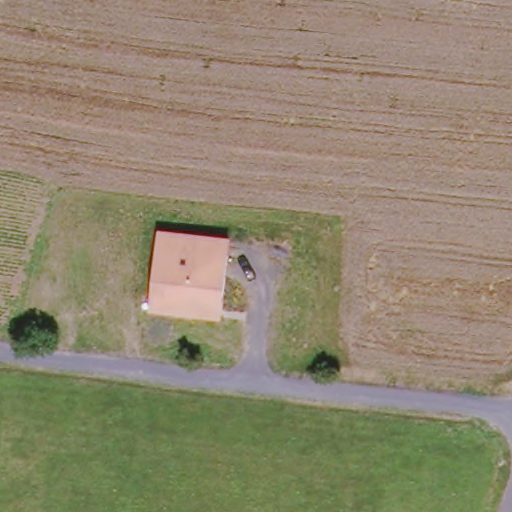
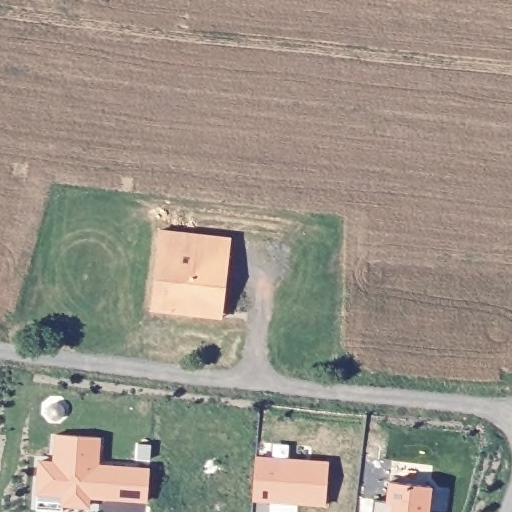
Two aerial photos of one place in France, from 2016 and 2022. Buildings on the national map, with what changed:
unchanged [(224,320),(151,311),(160,228),(232,235),(224,320)]
new [(39,461),(54,462),(56,435),(99,438),(97,465),(149,470),(147,501),(99,497),(100,493),(88,492),(87,506),(62,505),(63,495),(37,493),(39,461)]
new [(255,457),(328,462),(325,505),(252,500),(255,457)]
new [(373,500),(387,501),(390,480),(430,485),(427,512),(372,512),(373,500)]

